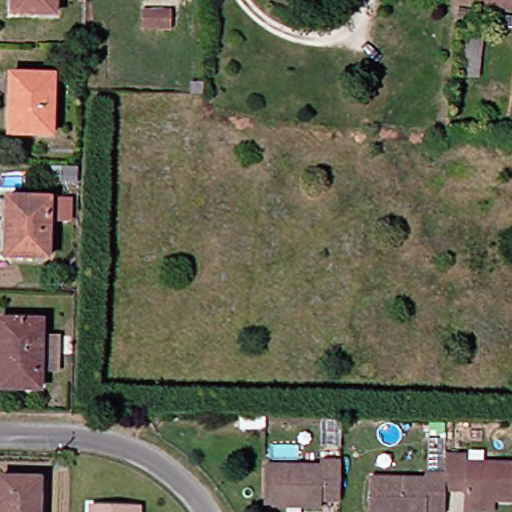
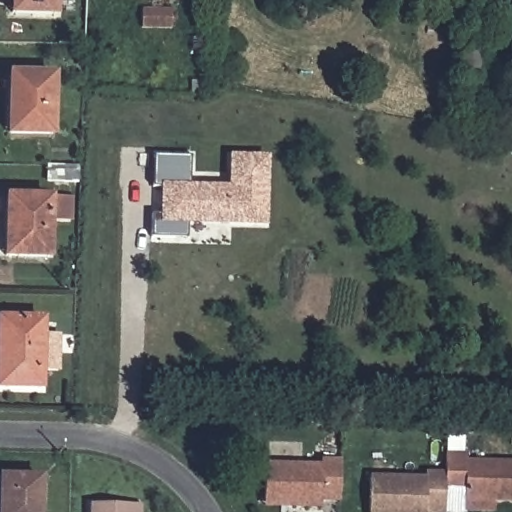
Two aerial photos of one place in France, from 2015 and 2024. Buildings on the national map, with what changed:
unchanged [(15,14),(15,0),(57,0),(57,14),(15,14)]
unchanged [(512,0),(512,5),(481,0),(512,0)]
unchanged [(174,25),(150,24),(150,9),(175,10),(174,25)]
unchanged [(60,76),(59,134),(16,133),(17,75),(60,76)]
new [(150,215),(158,215),(159,189),(151,188),(152,158),(188,159),(186,184),(227,186),(227,155),(268,157),(265,228),(186,225),(185,239),(149,239),(150,215)]
unchanged [(55,259),(12,258),(14,200),(56,200),(55,259)]
unchanged [(41,322),(40,389),(0,387),(0,320),(41,322)]
unchanged [(470,492),(447,492),(447,477),(448,458),(470,458),(470,466),(512,467),(512,503),(495,503),(495,512),(469,512),(469,501),(470,492)]
unchanged [(270,501),(271,469),(329,469),(329,464),(348,464),(347,504),(328,503),(328,511),(310,511),(270,510),(270,501)]
unchanged [(372,480),(427,481),(427,476),(447,477),(447,492),(447,512),(371,512),(372,480)]
unchanged [(47,512),(7,512),(7,483),(47,484),(47,512)]
unchanged [(95,508),(136,509),(136,512),(95,512),(95,508)]

